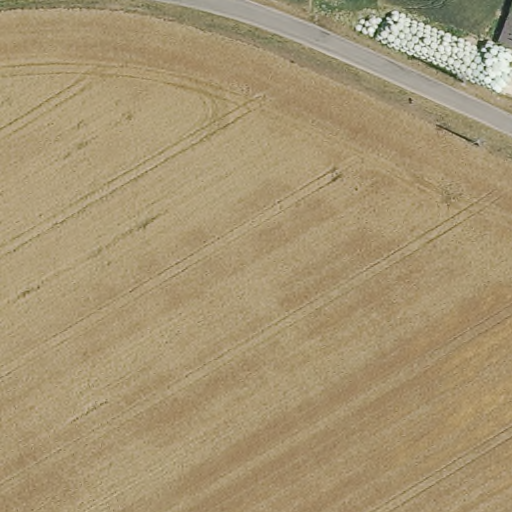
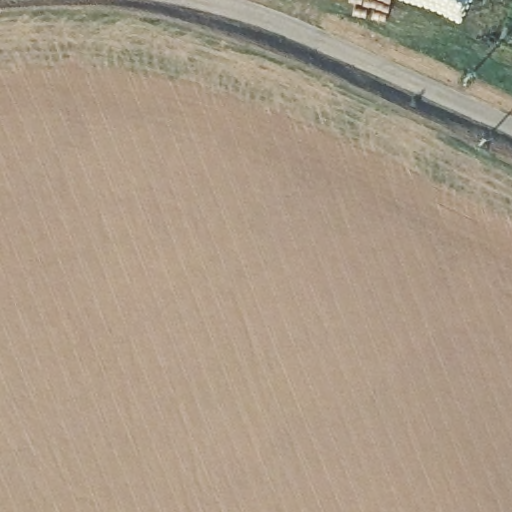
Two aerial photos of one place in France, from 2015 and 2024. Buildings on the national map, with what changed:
unchanged [(512,45),(496,40),(512,1),(512,45)]

